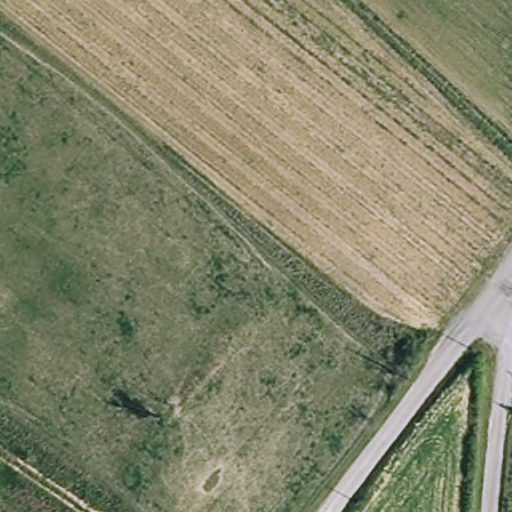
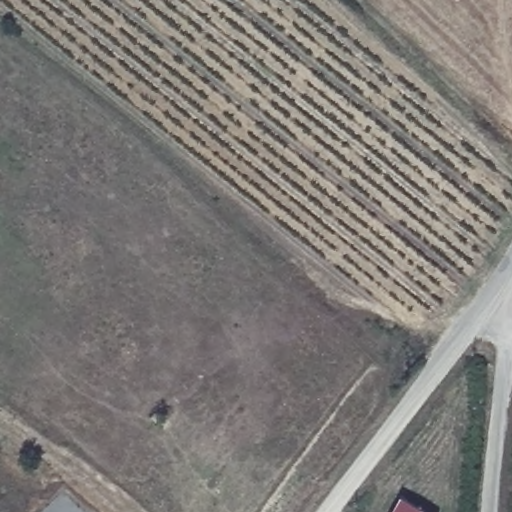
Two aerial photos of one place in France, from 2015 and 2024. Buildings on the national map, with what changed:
new [(427,512),(392,512),(400,497),(427,512)]

